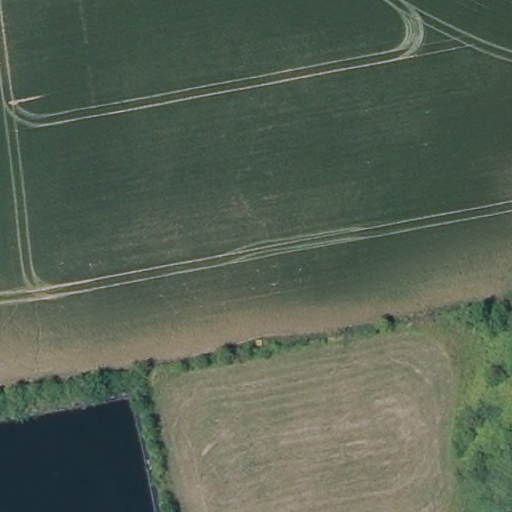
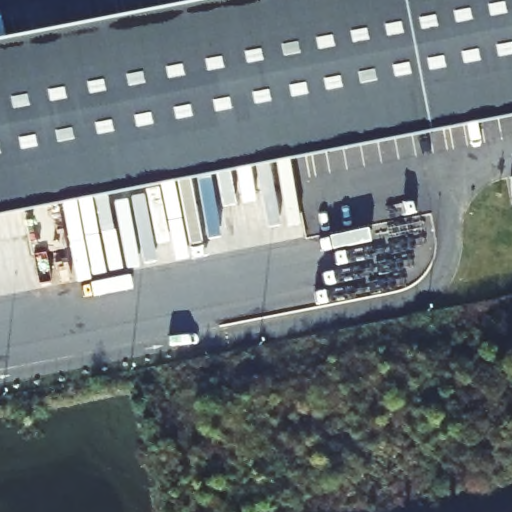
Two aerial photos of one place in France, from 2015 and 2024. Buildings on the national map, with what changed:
new [(193,0),(512,0),(512,116),(0,217),(0,37),(193,0)]

